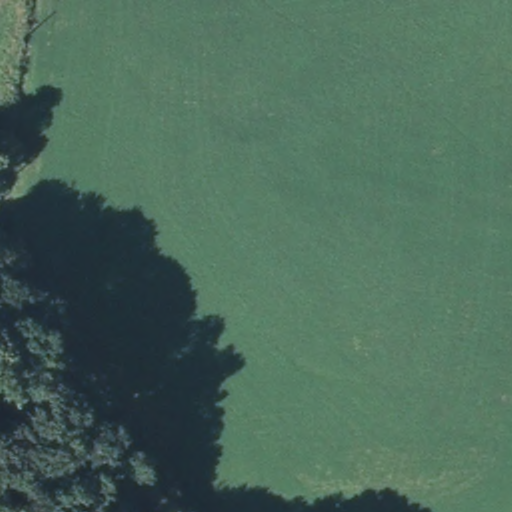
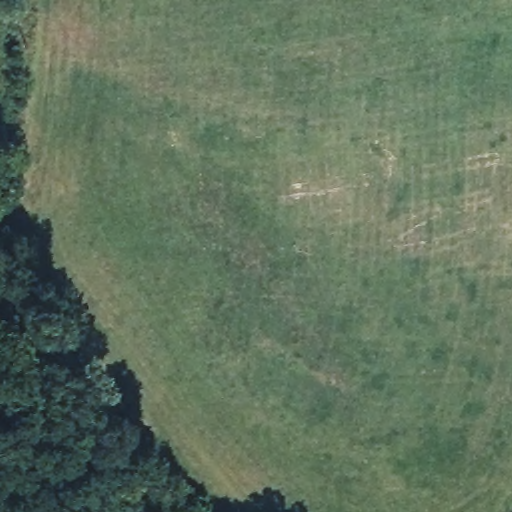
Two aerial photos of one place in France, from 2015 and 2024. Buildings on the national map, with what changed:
[]

